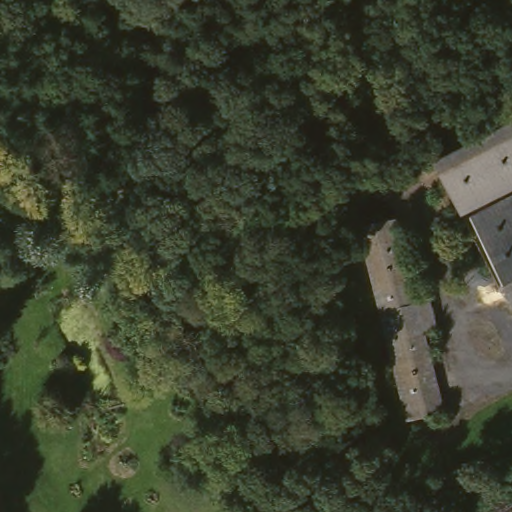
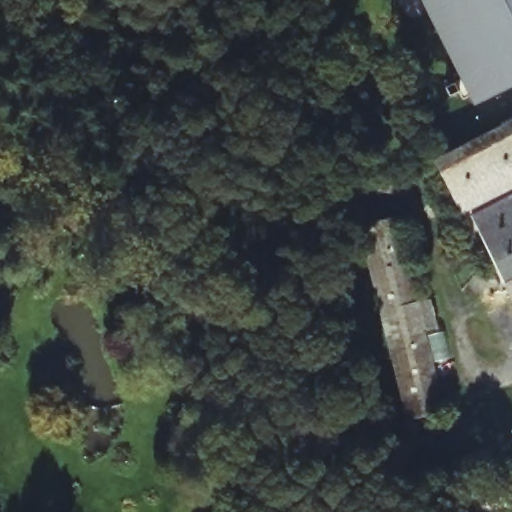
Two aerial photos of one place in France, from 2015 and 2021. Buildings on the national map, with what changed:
new [(486,108),(430,0),(512,0),(512,95),(486,108)]
unchanged [(467,219),(438,165),(512,126),(512,195),(467,219)]
unchanged [(467,219),(512,195),(512,303),(467,219)]
unchanged [(433,440),(343,263),(376,246),(466,423),(433,440)]

